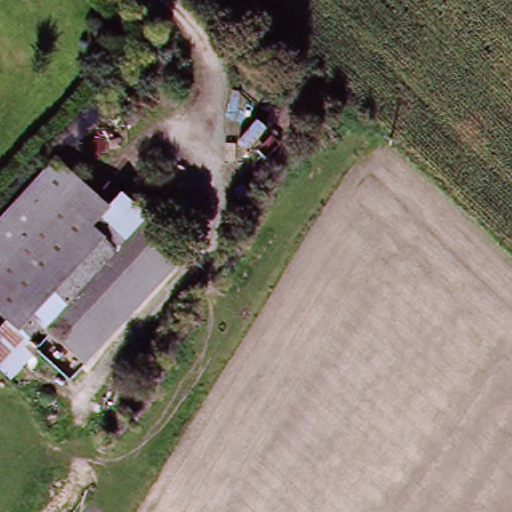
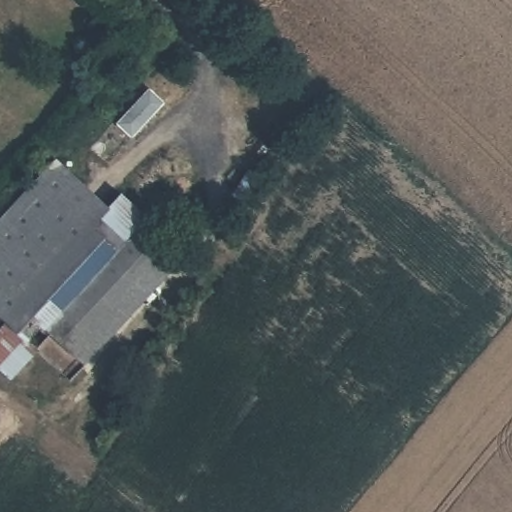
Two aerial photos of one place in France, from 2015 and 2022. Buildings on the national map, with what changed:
unchanged [(107,208),(121,194),(147,219),(188,254),(85,366),(44,336),(34,347),(39,351),(10,381),(0,372),(0,327),(4,322),(0,319),(0,221),(55,160),(81,185),(107,208)]

